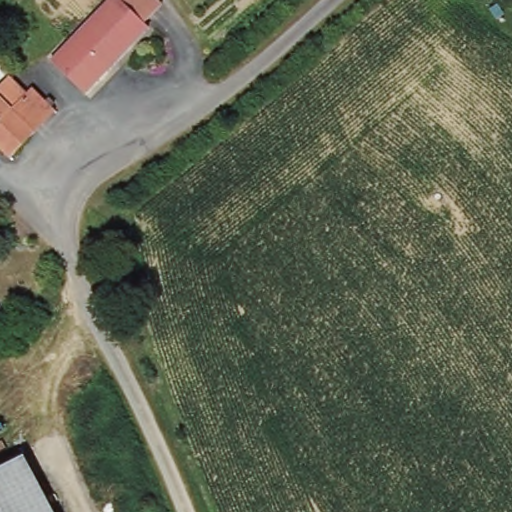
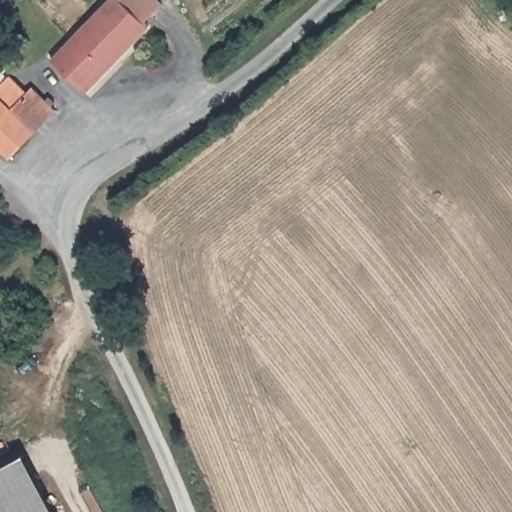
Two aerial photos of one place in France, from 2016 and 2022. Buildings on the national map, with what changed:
unchanged [(155,0),(160,4),(142,22),(146,26),(81,92),(47,59),(106,0),(155,0)]
unchanged [(0,153),(0,81),(4,77),(22,94),(6,110),(30,133),(7,158),(0,153)]
unchanged [(22,94),(27,88),(51,110),(30,133),(6,110),(22,94)]
unchanged [(0,466),(22,455),(52,512),(0,512),(0,466)]

